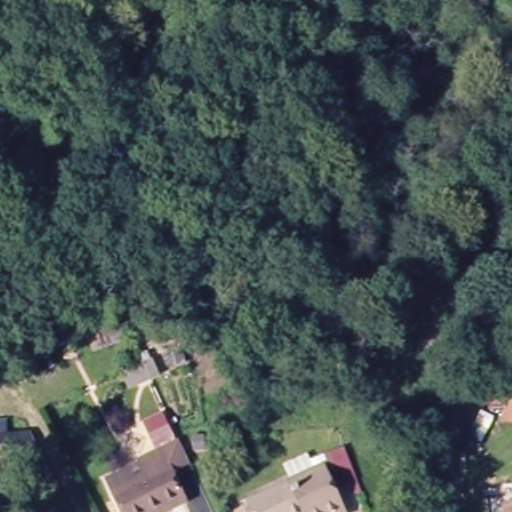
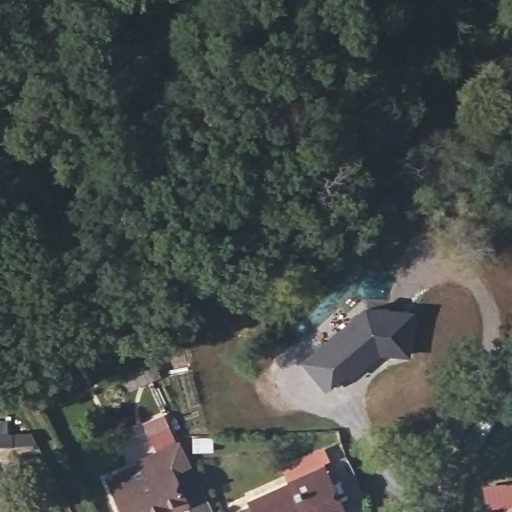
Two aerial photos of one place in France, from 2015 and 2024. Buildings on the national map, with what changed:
new [(344,320),(362,308),(414,310),(410,355),(392,353),(382,355),(359,375),(345,384),(338,388),(336,386),(325,394),(298,361),(344,320)]
unchanged [(139,358),(147,375),(121,386),(114,370),(139,358)]
unchanged [(140,468),(137,461),(163,451),(151,425),(167,419),(179,446),(188,469),(174,475),(187,505),(172,512),(124,512),(116,495),(109,481),(140,468)]
unchanged [(22,431),(28,442),(0,441),(0,430),(22,431)]
unchanged [(341,512),(244,512),(243,510),(323,471),(341,512)]
unchanged [(512,506),(512,512),(508,512),(507,507),(512,506)]

